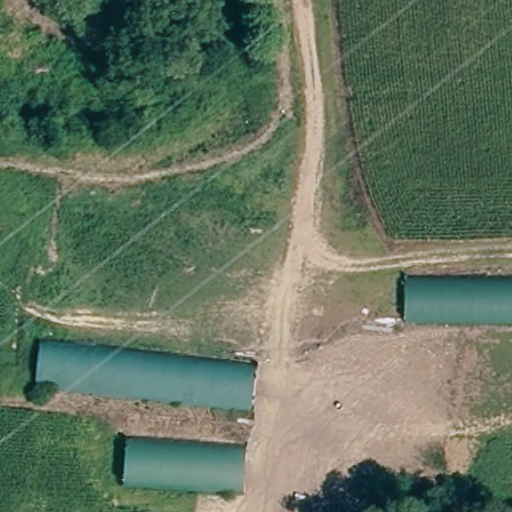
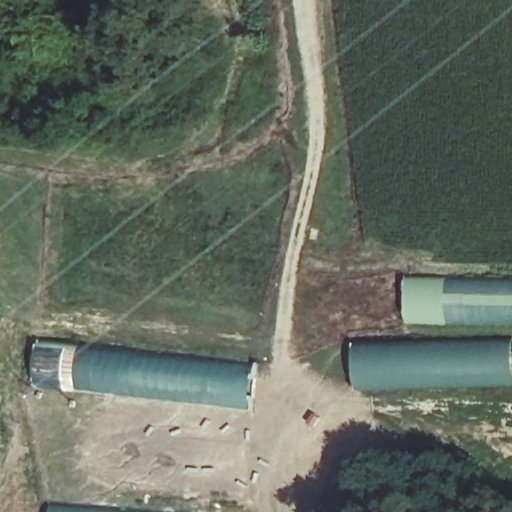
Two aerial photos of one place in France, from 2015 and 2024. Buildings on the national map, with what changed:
unchanged [(409,277),(512,278),(512,325),(408,324),(409,277)]
unchanged [(39,384),(42,339),(256,363),(250,409),(39,384)]
new [(357,388),(356,345),(512,341),(512,384),(357,388)]
demolished [(127,439),(244,453),(241,494),(123,481),(127,439)]
new [(53,509),(94,512),(53,512),(53,509)]

